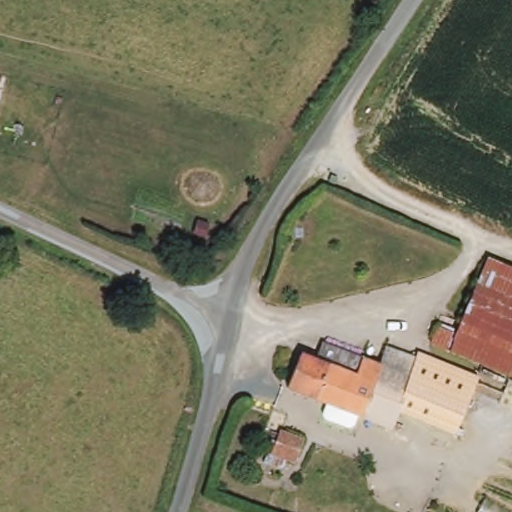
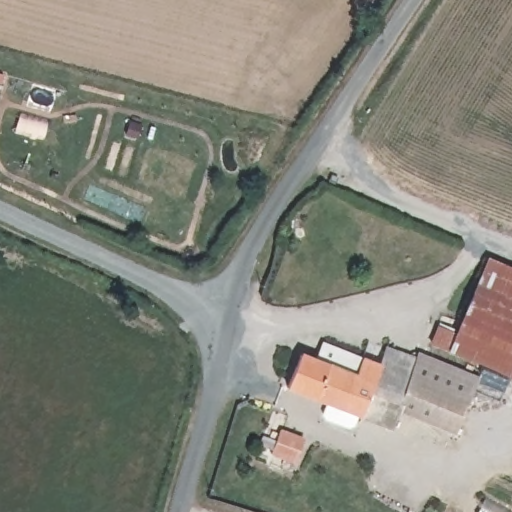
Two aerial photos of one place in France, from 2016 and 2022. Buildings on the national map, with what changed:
unchanged [(483,263),(512,274),(512,381),(445,354),(483,263)]
unchanged [(398,415),(390,430),(358,417),(352,430),(345,431),(325,422),(323,415),(327,405),(286,388),(299,357),(312,362),(317,347),(376,371),(383,352),(412,362),(417,347),(418,347),(421,348),(479,372),(479,375),(451,437),(398,415)]
unchanged [(273,451),(283,426),(306,435),(297,460),(273,451)]

